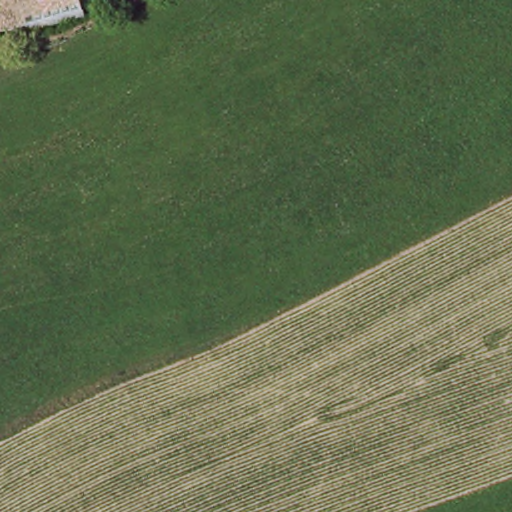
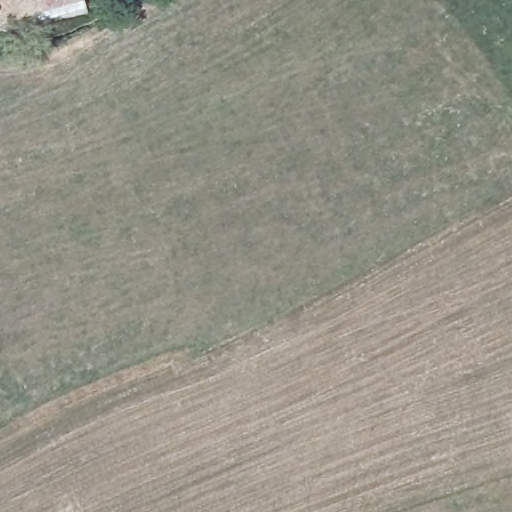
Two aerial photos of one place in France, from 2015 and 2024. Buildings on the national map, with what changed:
unchanged [(0,24),(0,0),(56,0),(58,8),(0,24)]

